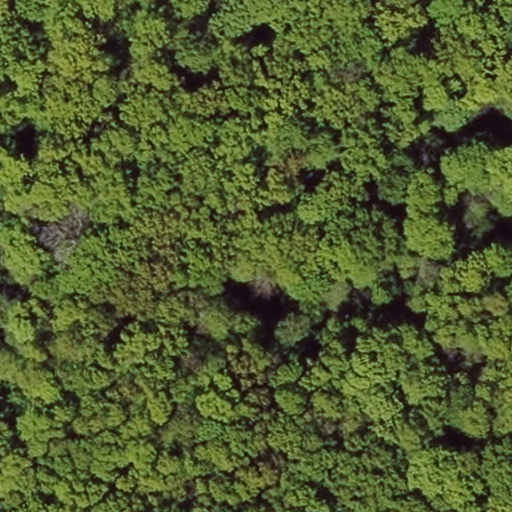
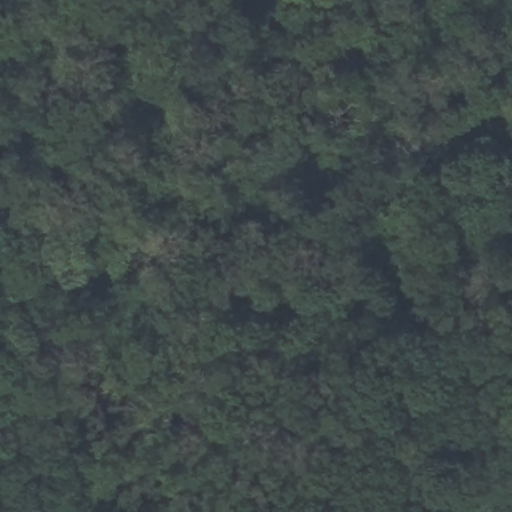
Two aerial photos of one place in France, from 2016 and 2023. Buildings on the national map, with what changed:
[]

